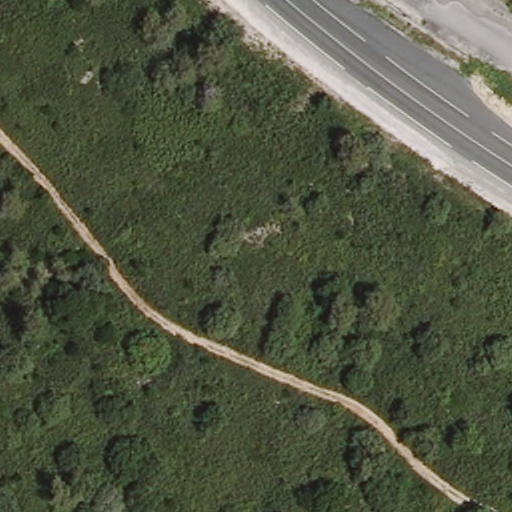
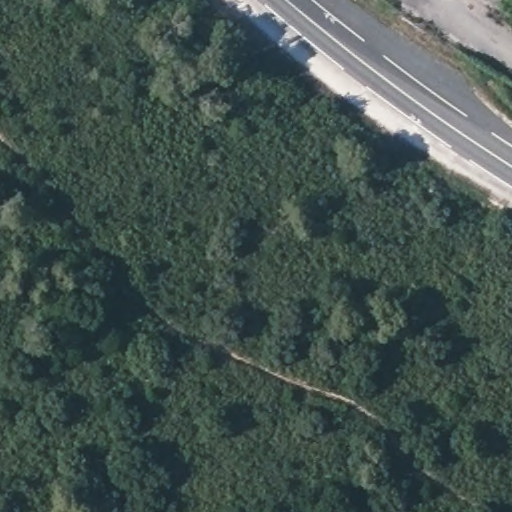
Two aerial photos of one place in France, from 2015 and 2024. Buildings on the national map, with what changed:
[]

